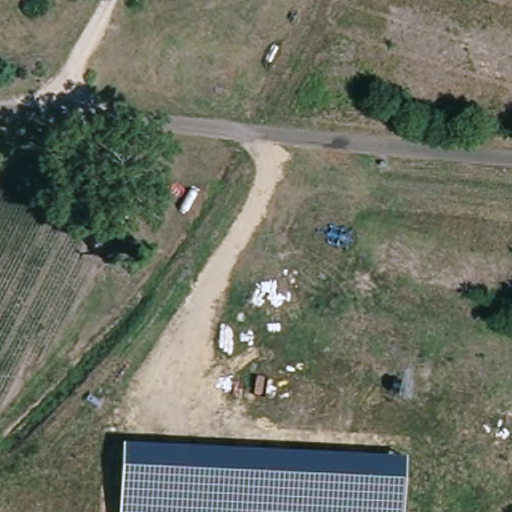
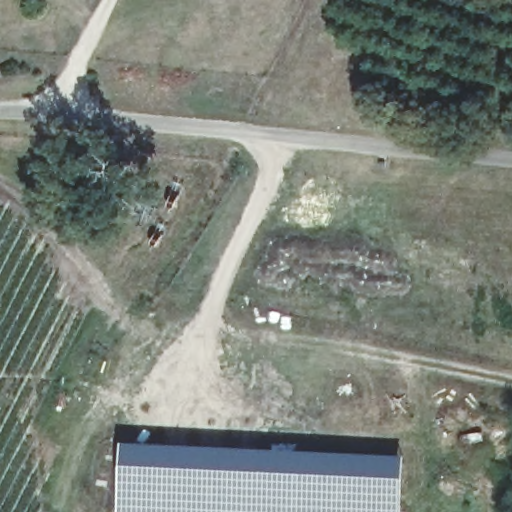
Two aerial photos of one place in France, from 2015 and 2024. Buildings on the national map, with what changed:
unchanged [(118,512),(121,441),(404,455),(402,512),(118,512)]

